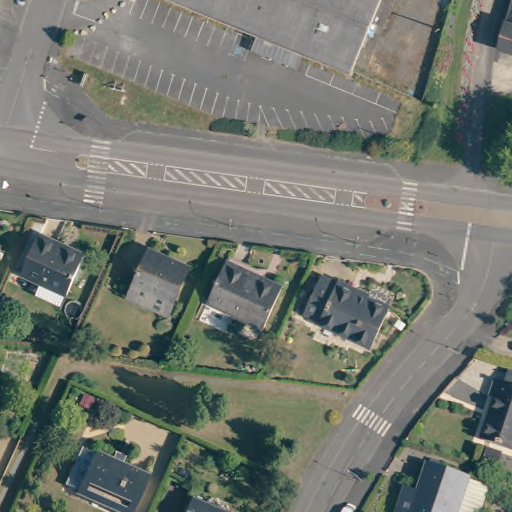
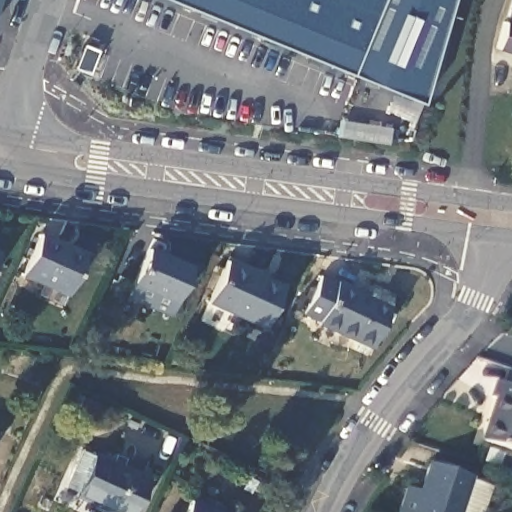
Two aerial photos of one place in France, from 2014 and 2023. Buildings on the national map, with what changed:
unchanged [(385,0),(354,74),(285,46),(238,28),(169,0),(385,0)]
new [(385,0),(450,0),(420,103),(354,76),(385,0)]
unchanged [(508,22),(510,23),(512,18),(512,51),(501,48),(508,22)]
unchanged [(82,249),(64,288),(62,287),(56,299),(34,289),(39,277),(18,268),(36,228),(82,249)]
unchanged [(189,270),(174,302),(133,284),(148,252),(189,270)]
unchanged [(282,282),(263,322),(209,298),(228,258),(282,282)]
unchanged [(368,345),(314,320),(315,319),(300,312),(318,275),(333,281),(333,280),(366,294),(371,282),(393,292),(368,345)]
unchanged [(493,397),(488,395),(492,380),(501,382),(506,368),(512,369),(512,448),(479,440),(493,397)]
unchanged [(501,452),(498,463),(483,459),(486,448),(501,452)]
unchanged [(147,476),(131,512),(123,512),(78,493),(96,453),(147,476)]
unchanged [(471,479),(490,484),(482,512),(402,512),(406,497),(408,491),(421,495),(431,463),(472,476),(471,479)]
unchanged [(227,512),(186,512),(193,497),(227,512)]

